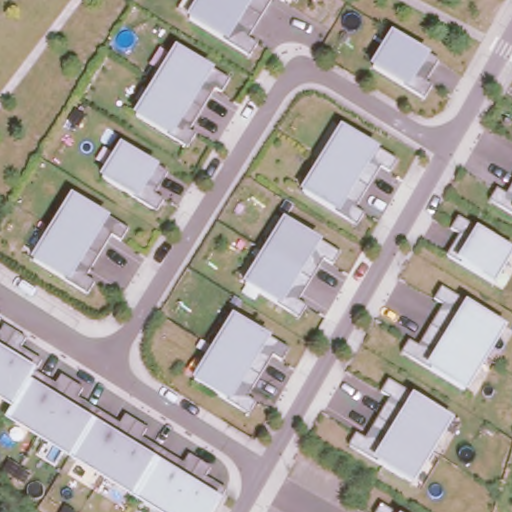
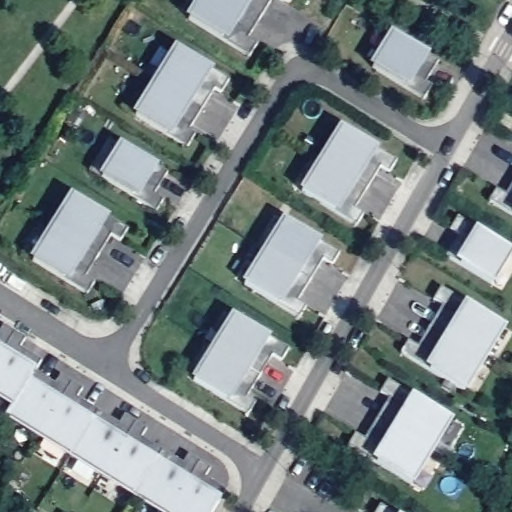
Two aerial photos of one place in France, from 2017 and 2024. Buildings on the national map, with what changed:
unchanged [(246,40),(255,45),(250,55),(226,43),(185,17),(195,0),(270,0),(246,40)]
unchanged [(284,1),(281,0),(284,0),(284,1)]
unchanged [(439,60),(424,83),(430,87),(422,98),(367,65),(391,28),(439,60)]
unchanged [(228,78),(220,92),(214,88),(187,131),(194,135),(187,146),(170,137),(131,113),(174,44),(228,78)]
unchanged [(396,159),(389,172),(380,166),(354,209),(361,213),(355,224),(337,214),(297,189),(339,125),(396,159)]
unchanged [(166,172),(153,194),(163,200),(156,210),(136,201),(98,177),(119,140),(166,172)]
unchanged [(511,216),(489,200),(497,188),(506,194),(512,184),(512,217),(511,216)]
unchanged [(127,228),(120,241),(111,235),(85,278),(94,283),(87,293),(67,282),(27,257),(69,192),(127,228)]
unchanged [(339,251),(332,263),(322,258),(296,302),(304,307),(298,317),(279,307),(240,283),(281,217),(339,251)]
unchanged [(512,250),(512,256),(494,287),(454,262),(446,253),(460,233),(451,227),(457,217),(512,250)]
unchanged [(507,327),(466,393),(424,368),(402,351),(408,341),(416,346),(443,304),(434,298),(440,287),(507,327)]
unchanged [(287,348),(280,359),(272,354),(246,398),(255,403),(249,412),(230,403),(190,379),(231,313),(287,348)]
unchanged [(26,339),(22,346),(43,360),(36,371),(54,383),(59,375),(82,389),(77,397),(119,423),(124,415),(147,428),(142,437),(182,463),(187,455),(211,468),(205,477),(227,490),(220,501),(213,512),(151,512),(4,419),(10,409),(0,403),(0,332),(3,326),(26,339)]
unchanged [(452,421),(414,485),(371,459),(349,444),(355,435),(363,440),(390,396),(380,391),(387,380),(452,421)]
unchanged [(376,512),(380,506),(389,512),(376,512)]

